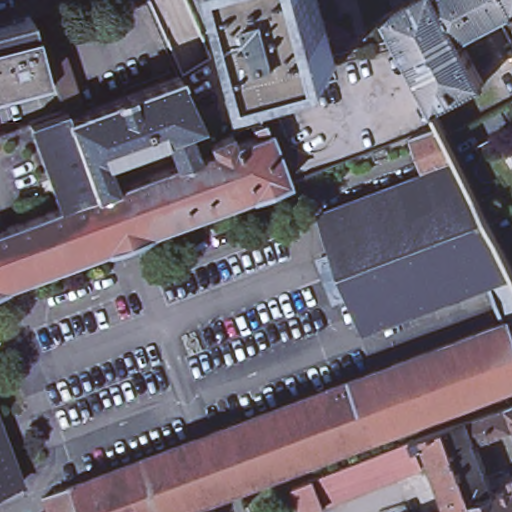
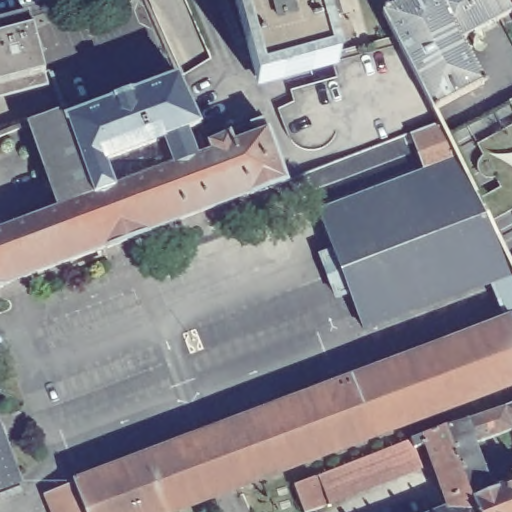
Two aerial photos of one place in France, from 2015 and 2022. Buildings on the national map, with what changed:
unchanged [(339,67),(259,89),(235,0),(322,0),(339,67)]
unchanged [(408,0),(512,0),(512,13),(506,16),(468,36),(491,81),(445,104),(446,106),(440,109),(390,10),(408,0)]
unchanged [(512,13),(512,28),(506,16),(512,13)]
unchanged [(36,42),(45,78),(0,90),(0,26),(30,18),(36,42)]
unchanged [(60,209),(32,127),(31,124),(65,111),(51,76),(45,78),(36,42),(55,35),(82,115),(180,78),(201,128),(187,133),(197,159),(213,153),(208,143),(231,131),(237,144),(257,135),(252,124),(263,120),(267,131),(288,184),(254,196),(252,196),(150,234),(150,235),(108,251),(108,249),(5,286),(5,288),(0,290),(0,232),(60,209)]
unchanged [(512,99),(512,252),(451,130),(512,99)]
unchanged [(341,246),(327,209),(433,169),(418,132),(446,121),(447,121),(451,130),(512,252),(512,275),(496,280),(371,328),(357,291),(342,297),(326,252),(341,246)]
unchanged [(512,275),(512,318),(496,280),(512,275)]
unchanged [(240,486),(171,512),(59,512),(50,490),(202,434),(217,428),(512,318),(512,383),(294,465),(240,486)]
unchanged [(512,404),(512,409),(510,405),(512,404)]
unchanged [(510,405),(512,409),(512,429),(480,440),(500,487),(512,483),(512,512),(484,512),(451,426),(510,405)]
unchanged [(462,493),(453,496),(451,494),(431,442),(421,445),(427,462),(405,472),(336,500),(326,473),(418,438),(428,434),(451,426),(484,512),(434,512),(465,500),(462,493)]
unchanged [(5,443),(18,477),(20,482),(0,490),(0,428),(5,443)]
unchanged [(302,482),(320,476),(326,493),(316,497),(322,512),(313,512),(308,500),(302,482)]
unchanged [(303,512),(304,511),(304,512),(303,512)]

